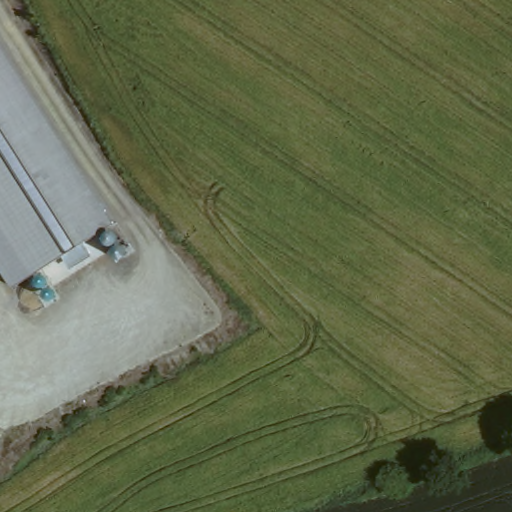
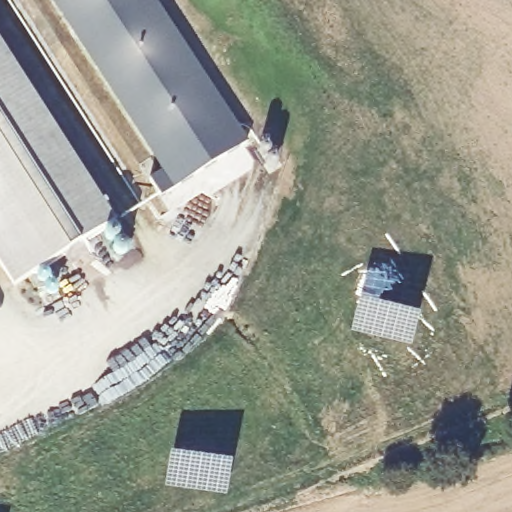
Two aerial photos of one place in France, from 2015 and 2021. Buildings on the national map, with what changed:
new [(161,200),(150,181),(160,174),(49,0),(156,0),(249,146),(161,200)]
unchanged [(84,243),(91,255),(71,268),(65,255),(13,286),(0,267),(0,41),(116,222),(84,243)]

